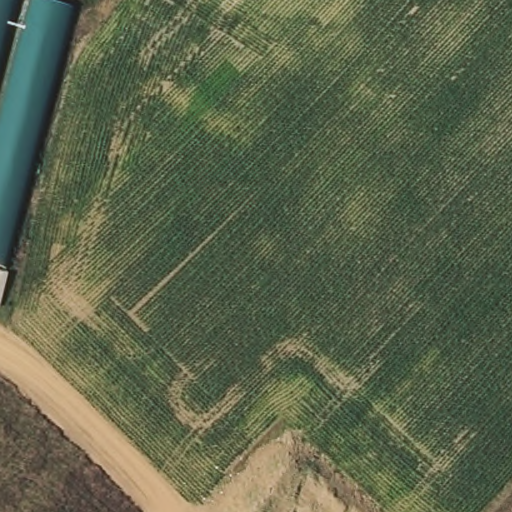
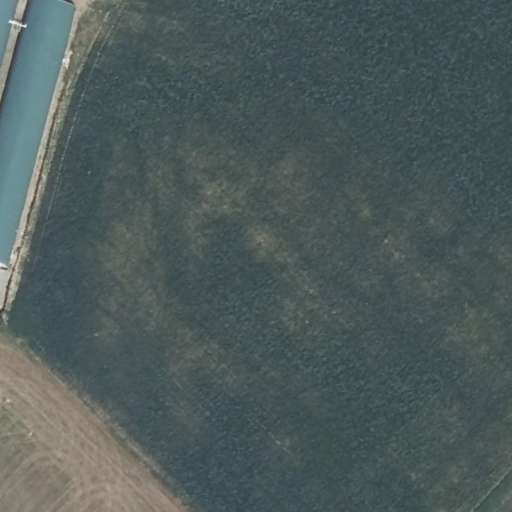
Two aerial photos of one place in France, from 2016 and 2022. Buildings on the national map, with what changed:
unchanged [(0,70),(0,0),(19,0),(0,70)]
unchanged [(9,266),(0,263),(0,118),(31,0),(51,0),(77,7),(9,266)]
unchanged [(0,294),(0,273),(5,275),(0,294)]

